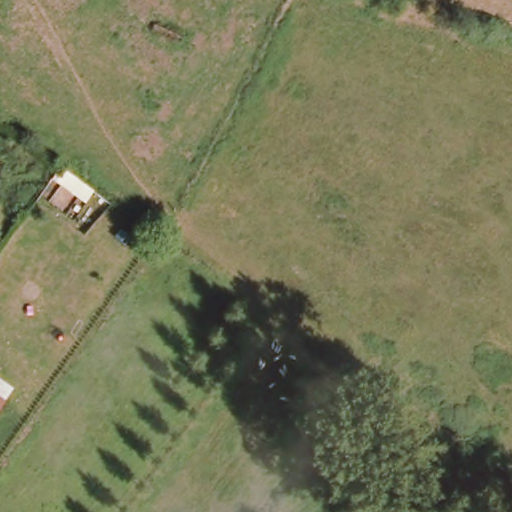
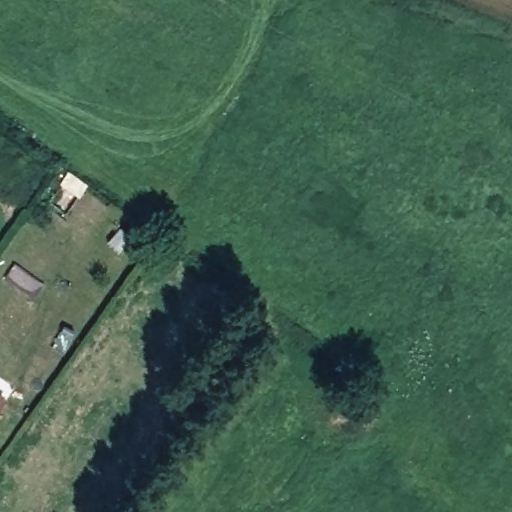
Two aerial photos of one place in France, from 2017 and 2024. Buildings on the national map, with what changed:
unchanged [(0,407),(0,397),(5,400),(0,407)]

